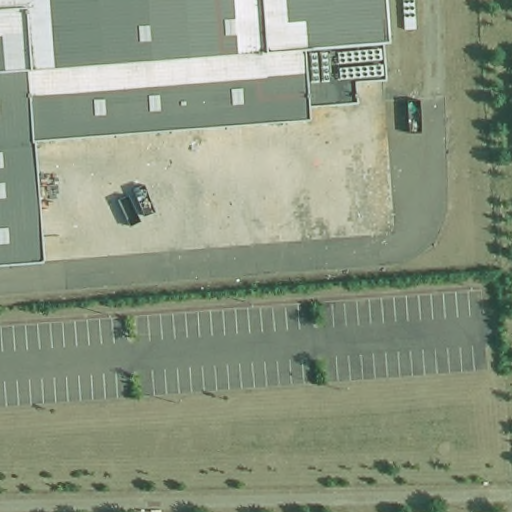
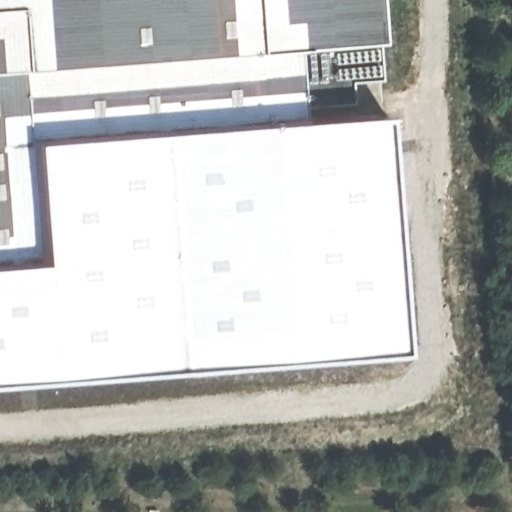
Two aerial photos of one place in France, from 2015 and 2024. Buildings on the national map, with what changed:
unchanged [(351,82),(352,104),(302,107),(302,121),(27,140),(37,262),(0,265),(0,0),(375,0),(381,81),(351,82)]
new [(27,140),(302,121),(392,114),(402,354),(0,374),(0,265),(37,262),(27,140)]

